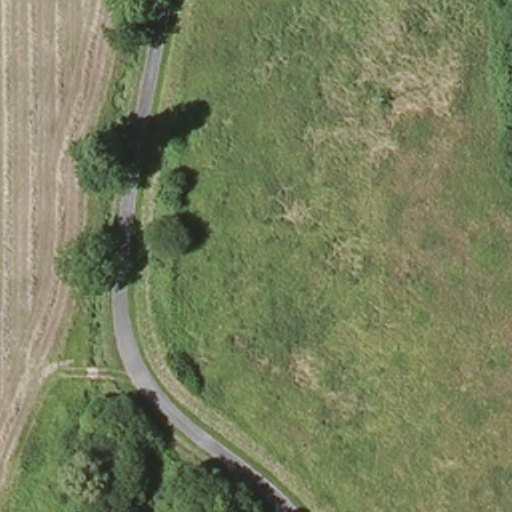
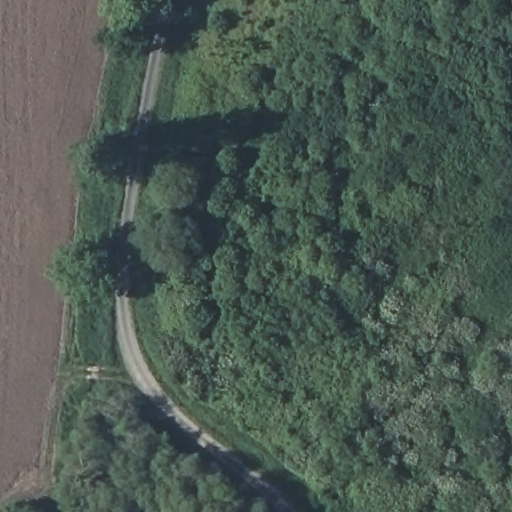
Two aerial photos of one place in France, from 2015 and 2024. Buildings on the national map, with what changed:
[]

